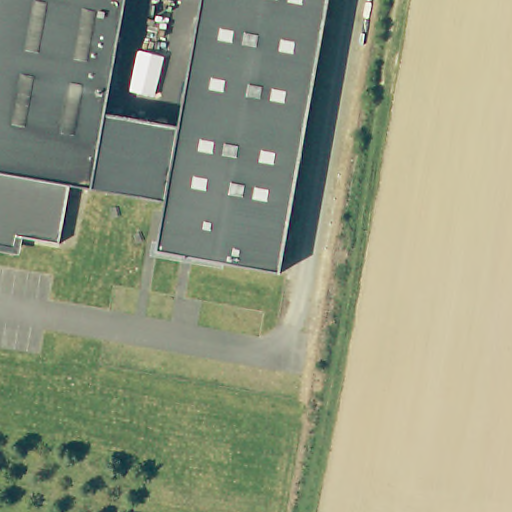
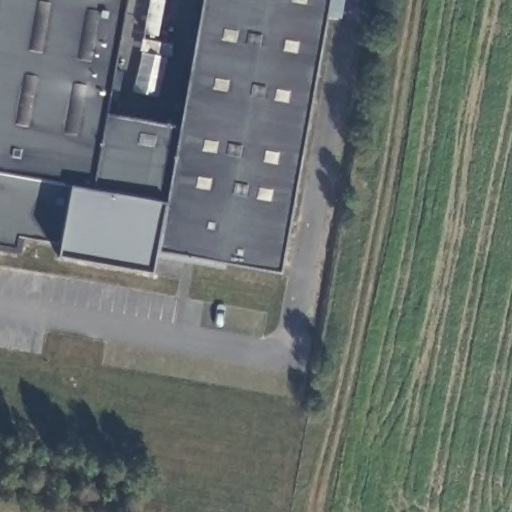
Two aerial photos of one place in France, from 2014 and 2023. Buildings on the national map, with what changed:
unchanged [(322,85),(287,278),(206,263),(162,256),(170,207),(122,198),(98,194),(76,190),(65,249),(25,242),(22,254),(0,249),(0,0),(337,0),(328,49),(322,85)]
new [(155,254),(151,273),(59,257),(60,247),(65,249),(76,190),(98,194),(122,198),(170,207),(163,250),(162,256),(155,254)]

